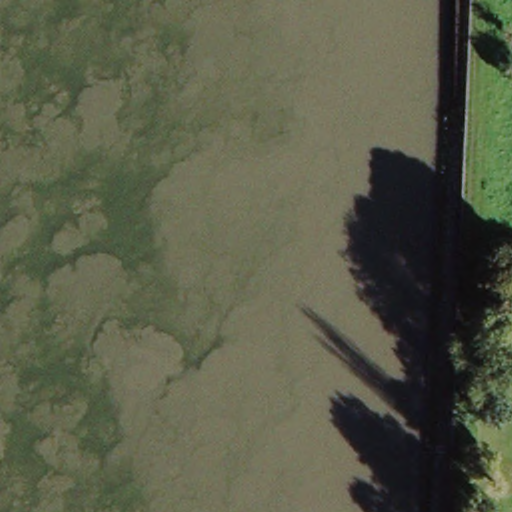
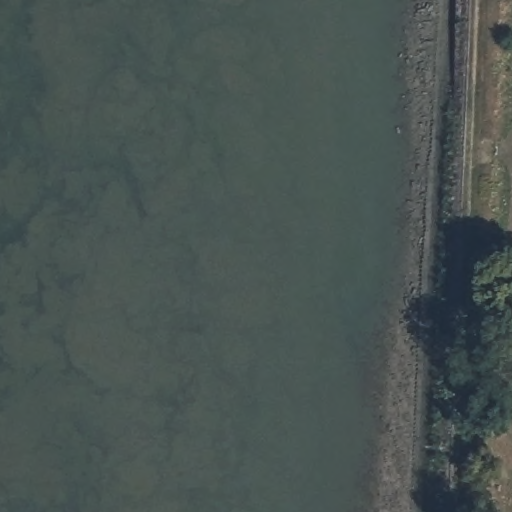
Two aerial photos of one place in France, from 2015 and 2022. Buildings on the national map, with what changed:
[]

